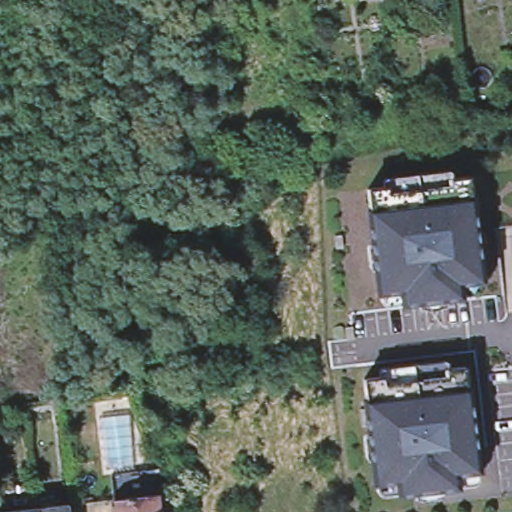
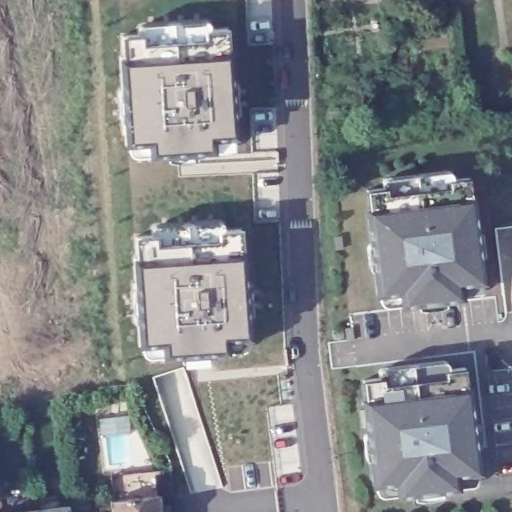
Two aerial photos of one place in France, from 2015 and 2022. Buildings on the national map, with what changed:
new [(152,145),(124,146),(118,59),(123,59),(122,34),(227,28),(227,53),(234,53),(238,139),(215,140),(215,153),(153,158),(152,145)]
unchanged [(417,304),(417,303),(402,304),(401,292),(378,295),(375,270),(377,270),(373,245),(372,245),(368,213),(370,212),(368,190),(387,188),(388,194),(451,187),(450,180),(470,178),(472,199),(475,199),(479,232),(477,233),(480,258),(482,257),(485,282),(462,284),(463,297),(449,299),(450,300),(447,300),(419,304),(417,304)]
new [(132,258),(137,258),(136,235),(240,229),(240,252),(247,252),(253,339),(230,340),(230,354),(163,359),(162,347),(139,348),(132,258)]
unchanged [(342,236),(343,249),(337,249),(335,237),(342,236)]
unchanged [(353,328),(355,340),(347,341),(346,329),(353,328)]
unchanged [(413,494),(413,493),(398,494),(397,482),(375,484),(372,461),(373,460),(370,435),(368,435),(367,428),(363,428),(361,411),(365,411),(365,403),(367,402),(365,380),(384,378),(385,384),(447,377),(447,370),(466,368),(469,389),(471,389),(475,422),(473,422),(477,447),(478,447),(482,472),(458,474),(460,487),(445,489),(445,490),(443,490),(415,494),(413,494)]
unchanged [(158,496),(160,512),(114,512),(113,502),(158,496)]
unchanged [(39,510),(68,506),(69,512),(39,512),(39,510)]
unchanged [(39,510),(39,512),(22,512),(39,510)]

